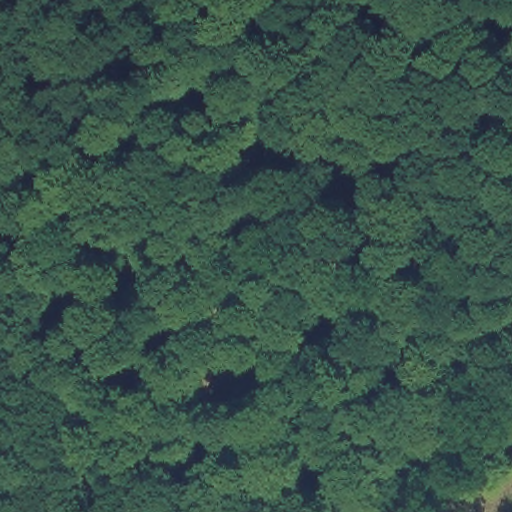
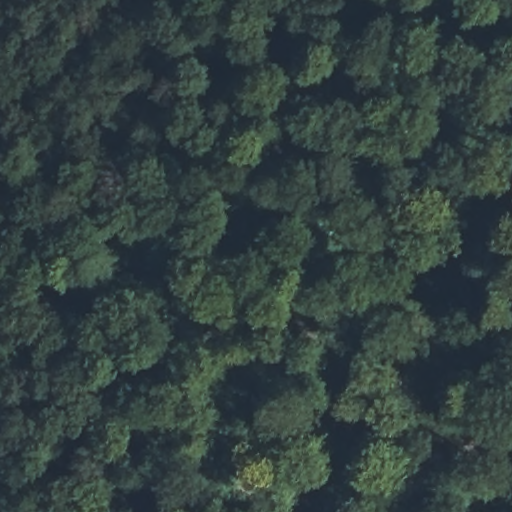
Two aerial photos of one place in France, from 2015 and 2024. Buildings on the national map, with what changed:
[]

